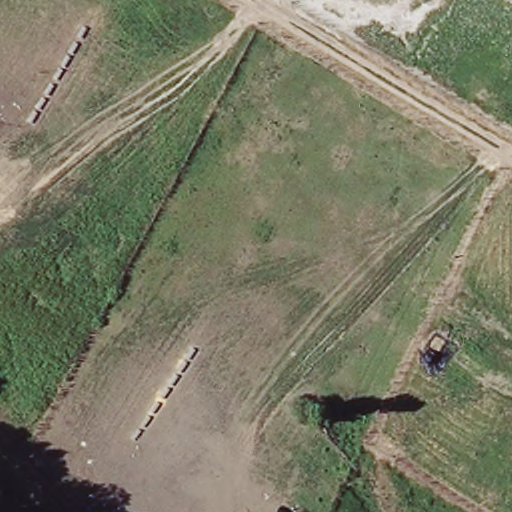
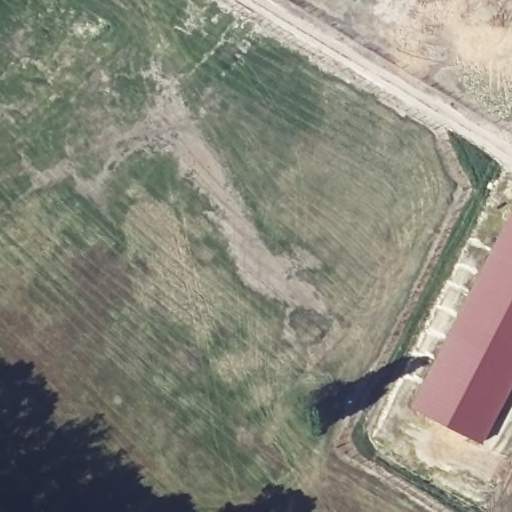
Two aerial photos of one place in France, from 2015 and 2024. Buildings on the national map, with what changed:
new [(512,383),(483,440),(413,403),(512,211),(512,383)]
demolished [(287,512),(274,512),(279,506),(287,512)]

